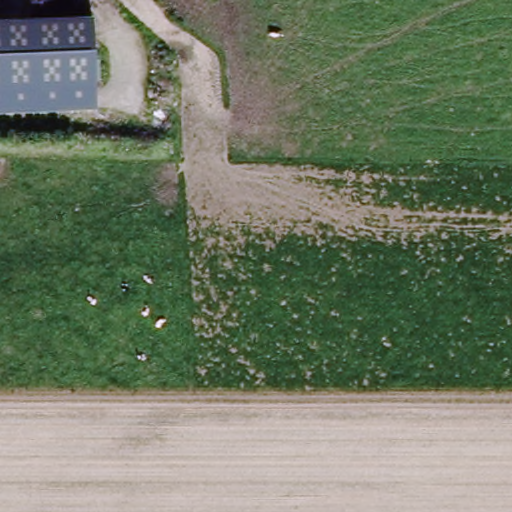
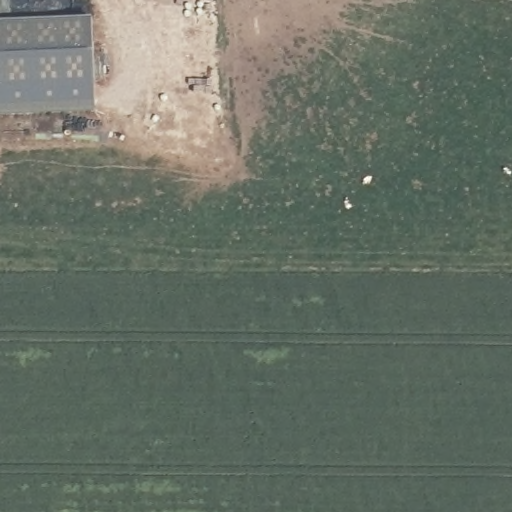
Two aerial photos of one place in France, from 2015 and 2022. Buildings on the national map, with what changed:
unchanged [(96,110),(0,114),(0,23),(92,19),(96,110)]

